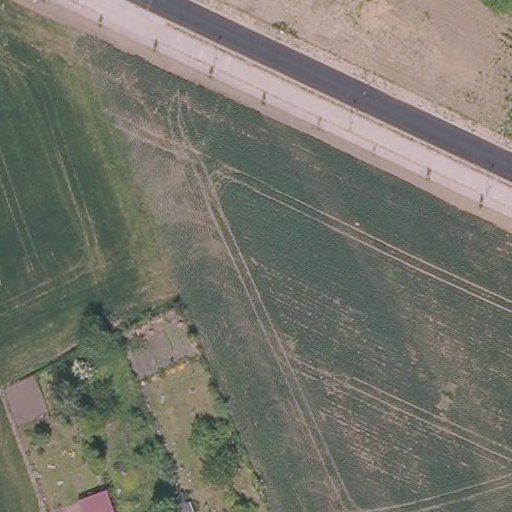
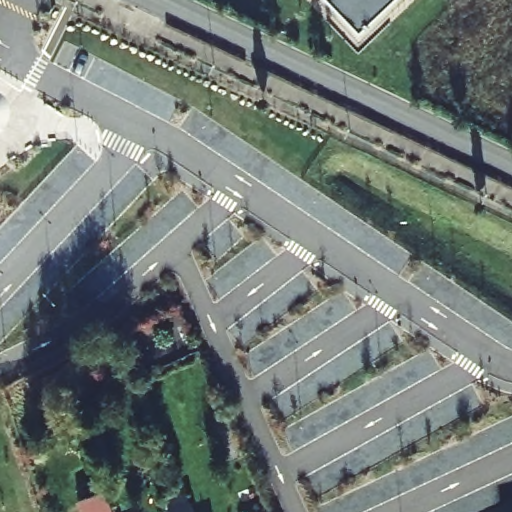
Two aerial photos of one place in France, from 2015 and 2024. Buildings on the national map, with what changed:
new [(363,33),(330,0),(399,0),(363,33)]
unchanged [(108,494),(113,512),(82,512),(79,504),(108,494)]

